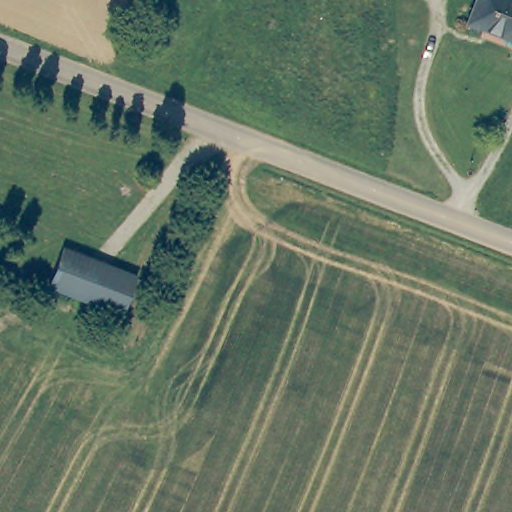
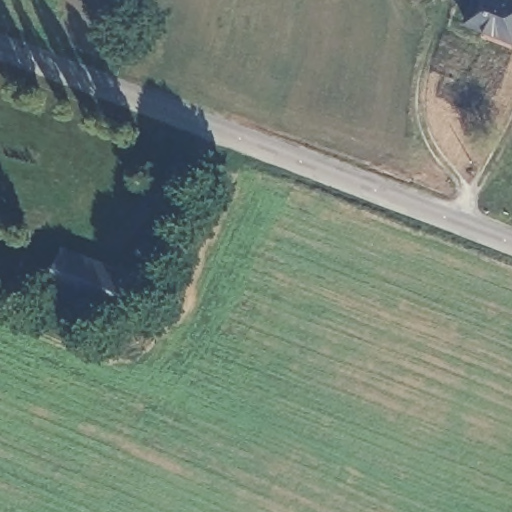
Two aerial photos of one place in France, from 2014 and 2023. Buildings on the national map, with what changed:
unchanged [(479,0),(512,0),(512,40),(470,22),(479,0)]
unchanged [(134,275),(120,314),(47,287),(62,248),(134,275)]

